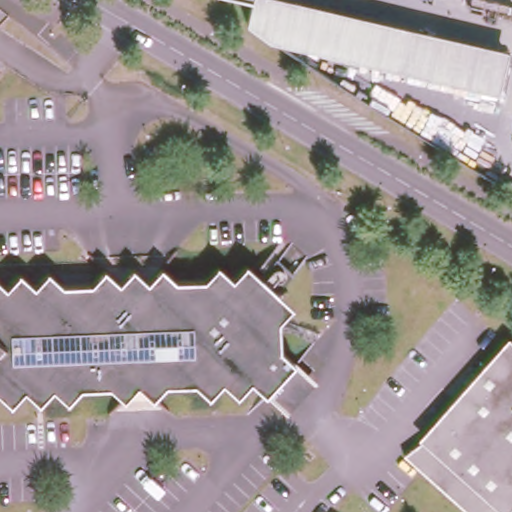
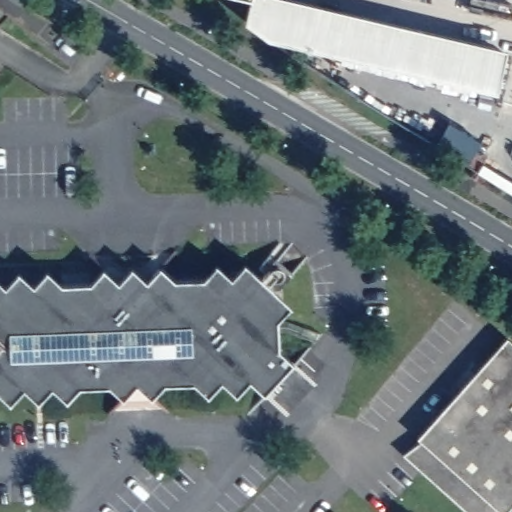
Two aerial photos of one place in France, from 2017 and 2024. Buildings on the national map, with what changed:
unchanged [(380,62),(325,54),(291,33),(251,5),(252,0),(280,0),(388,17),(380,62)]
unchanged [(291,33),(325,54),(279,47),(248,25),(251,5),(291,33)]
unchanged [(503,80),(499,107),(468,102),(473,75),(380,62),(388,17),(510,37),(503,80)]
unchanged [(19,264),(38,280),(49,265),(61,278),(96,276),(105,261),(122,276),(136,260),(154,273),(166,261),(177,275),(211,273),(221,260),(233,275),(246,260),(290,304),(278,317),(280,351),(315,381),(284,406),(261,390),(246,376),(231,393),(218,380),(206,393),(193,379),(159,380),(148,394),(136,378),(121,395),(109,382),(76,383),(64,400),(50,385),(34,398),(20,386),(8,400),(0,394),(0,272),(9,281),(19,264)]
unchanged [(504,331),(512,338),(512,501),(503,511),(502,512),(461,512),(399,455),(416,431),(504,331)]

